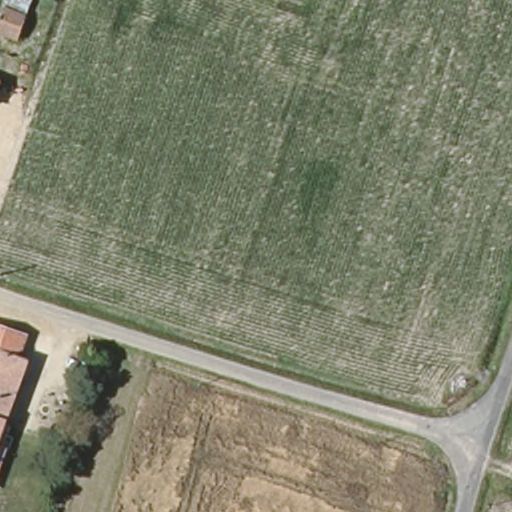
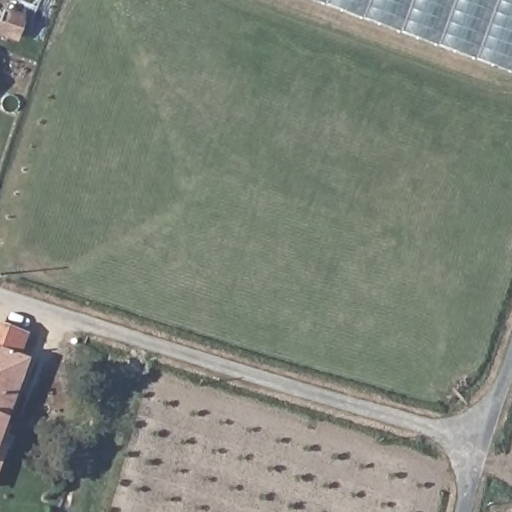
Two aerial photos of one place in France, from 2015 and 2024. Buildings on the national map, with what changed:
unchanged [(0,46),(0,20),(7,0),(10,0),(24,6),(10,50),(0,46)]
new [(512,70),(335,0),(512,0),(512,70)]
unchanged [(26,341),(20,364),(26,367),(22,377),(5,424),(0,422),(0,332),(26,341)]
unchanged [(5,424),(0,438),(0,422),(5,424)]
unchanged [(3,454),(0,463),(0,453),(3,454)]

